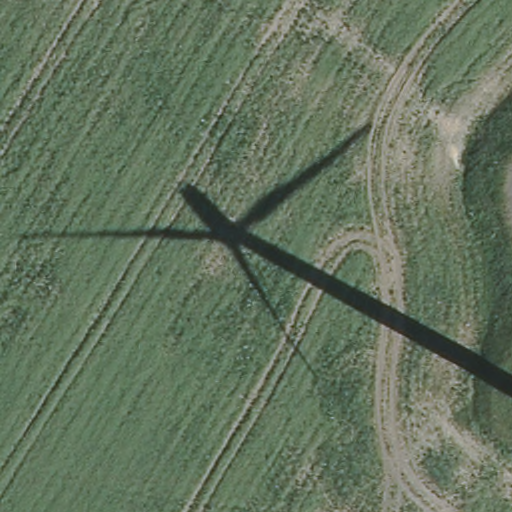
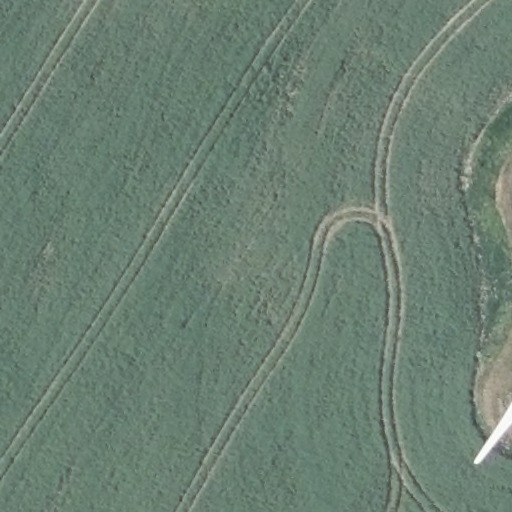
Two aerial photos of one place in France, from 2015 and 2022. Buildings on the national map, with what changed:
[]

